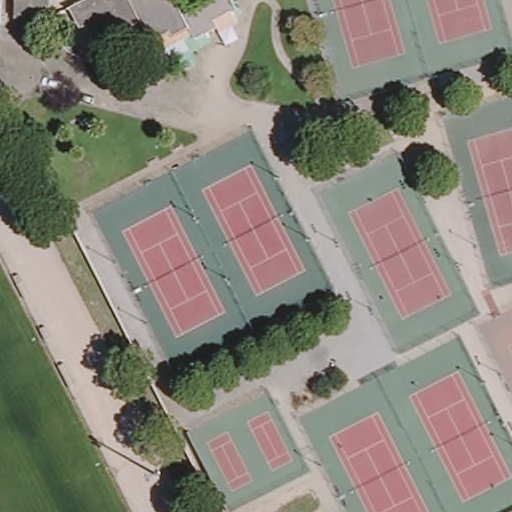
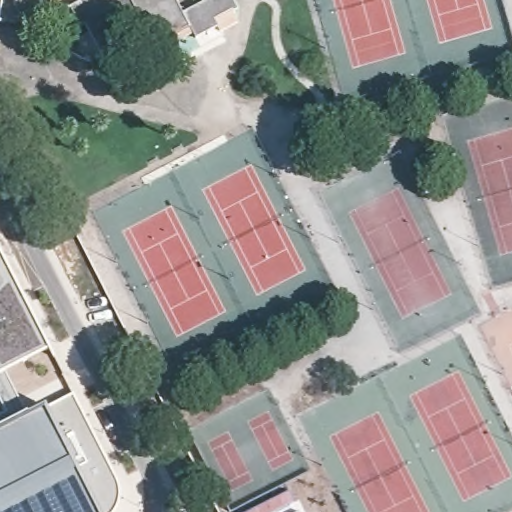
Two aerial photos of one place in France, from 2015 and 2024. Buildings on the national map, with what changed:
unchanged [(49,27),(0,31),(0,12),(12,12),(12,0),(47,0),(49,27)]
unchanged [(86,0),(184,0),(186,5),(194,0),(226,0),(234,15),(214,23),(218,33),(192,41),(188,32),(149,49),(141,33),(97,54),(85,30),(79,33),(69,9),(86,0)]
new [(120,481),(121,497),(116,512),(0,512),(0,248),(120,481)]

